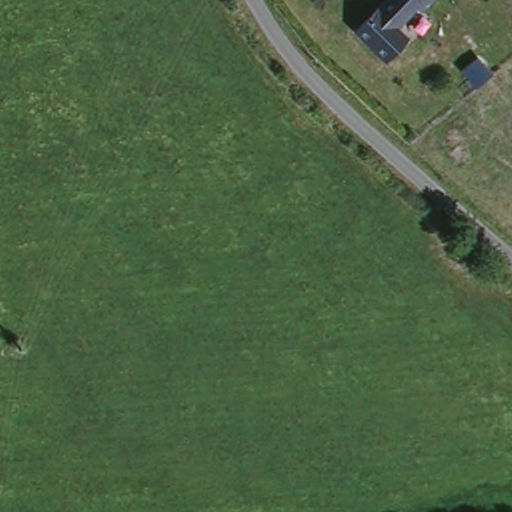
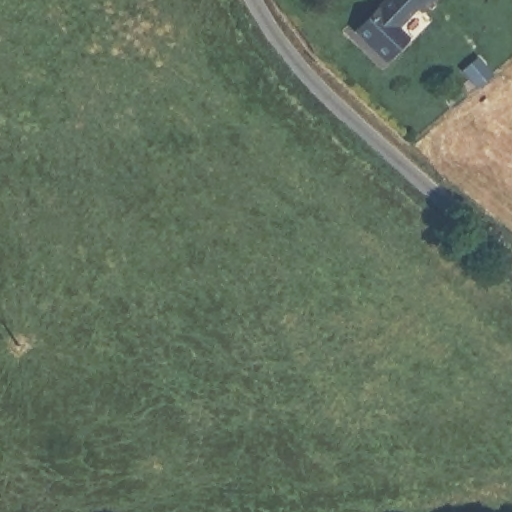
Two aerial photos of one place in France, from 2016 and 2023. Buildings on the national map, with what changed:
unchanged [(411,5),(388,25),(371,6),(378,0),(427,0),(416,10),(411,5)]
unchanged [(388,25),(394,20),(410,39),(383,64),(349,28),(371,6),(388,25)]

